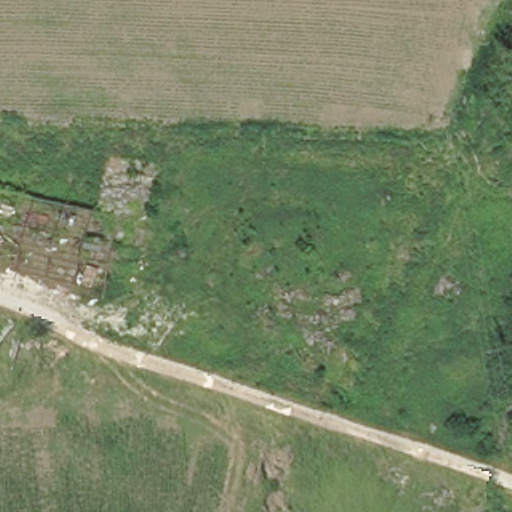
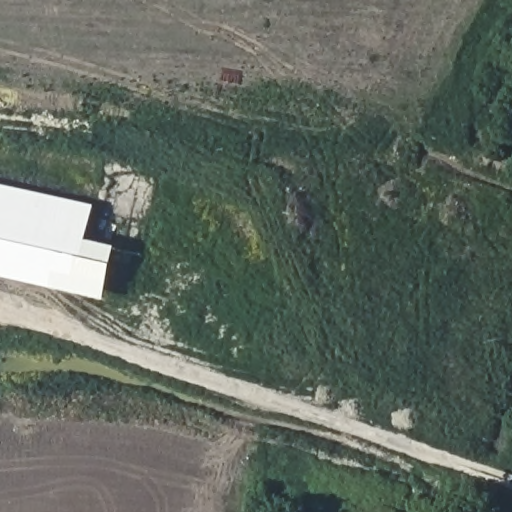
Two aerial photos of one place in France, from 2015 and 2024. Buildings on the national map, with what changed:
new [(95,206),(90,240),(120,245),(107,300),(0,277),(0,185),(95,206)]

